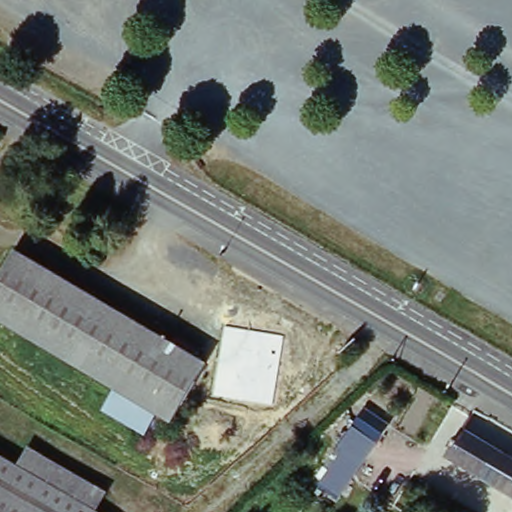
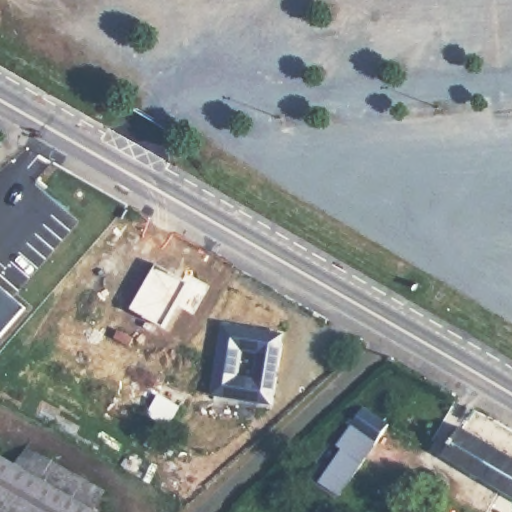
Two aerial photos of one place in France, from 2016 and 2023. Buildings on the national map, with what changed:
demolished [(169,422),(0,322),(0,275),(15,250),(205,362),(169,422)]
new [(279,340),(270,407),(211,398),(222,329),(279,340)]
unchanged [(389,431),(376,448),(363,467),(339,501),(316,487),(339,455),(333,451),(362,412),(389,431)]
unchanged [(512,458),(512,499),(445,458),(463,430),(512,458)]
unchanged [(101,502),(95,512),(75,512),(10,476),(21,456),(101,502)]
unchanged [(0,512),(0,470),(10,476),(75,512),(0,512)]

